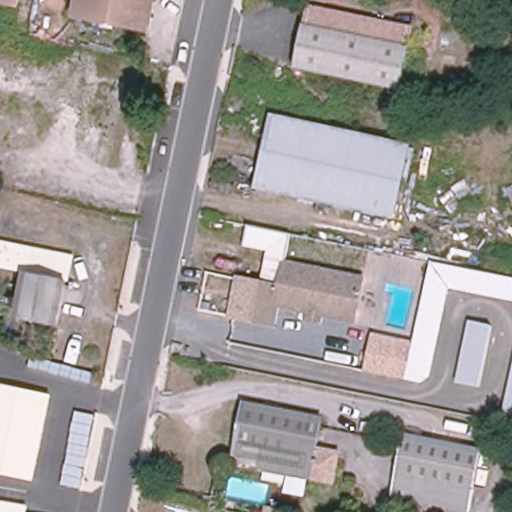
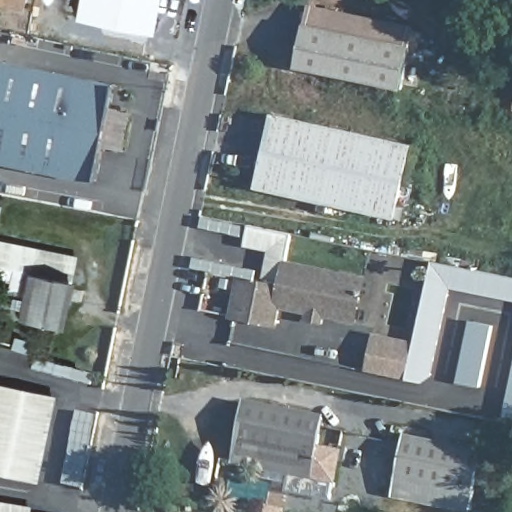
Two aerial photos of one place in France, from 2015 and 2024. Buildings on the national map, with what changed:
unchanged [(0,2),(0,0),(19,0),(18,5),(0,2)]
unchanged [(74,15),(77,0),(155,0),(149,31),(74,15)]
unchanged [(401,89),(295,68),(304,25),(308,8),(326,11),(413,29),(401,89)]
new [(0,162),(0,60),(114,83),(95,181),(0,162)]
unchanged [(393,218),(257,188),(273,114),(409,144),(393,218)]
unchanged [(279,287),(264,283),(269,253),(245,249),(249,224),(292,233),(284,262),(279,287)]
new [(24,272),(24,273),(0,267),(0,240),(74,255),(69,280),(24,272)]
unchanged [(452,289),(431,384),(409,379),(417,342),(434,261),(512,277),(512,301),(452,289)]
unchanged [(307,319),(309,312),(278,306),(274,324),(230,316),(238,278),(264,283),(279,287),(284,262),(363,278),(354,322),(322,314),(321,322),(307,319)]
unchanged [(59,328),(14,319),(24,272),(69,280),(59,328)]
unchanged [(483,387),(457,382),(470,319),(496,325),(483,387)]
unchanged [(366,372),(374,332),(417,342),(409,379),(366,372)]
unchanged [(503,421),(512,377),(512,423),(503,421)]
unchanged [(33,479),(0,472),(0,385),(50,395),(33,479)]
unchanged [(334,479),(307,473),(304,490),(285,486),(289,469),(233,458),(244,398),(322,414),(317,443),(340,447),(334,479)]
unchanged [(470,509),(392,494),(403,436),(482,451),(470,509)]
unchanged [(22,512),(0,512),(0,504),(23,509),(22,512)]

